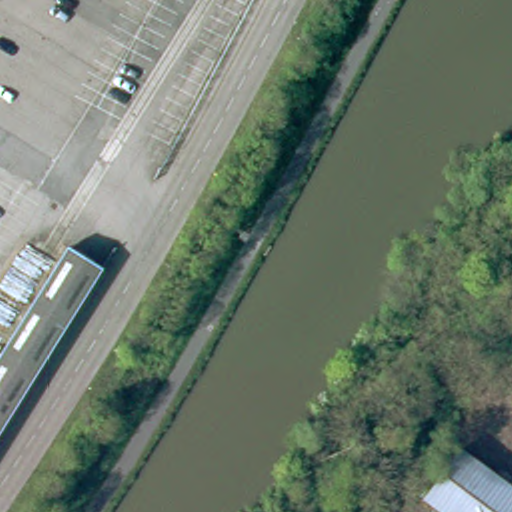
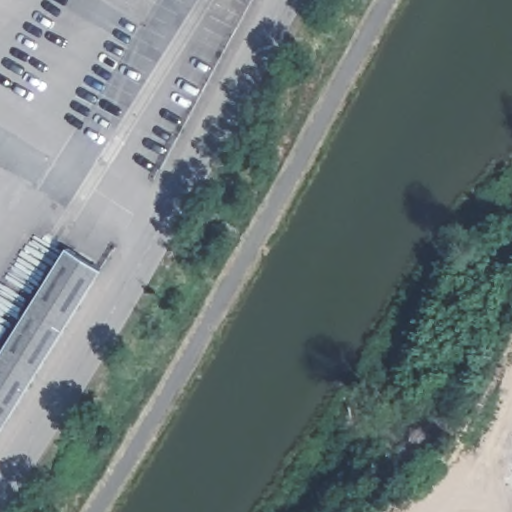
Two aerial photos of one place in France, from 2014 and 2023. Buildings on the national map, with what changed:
unchanged [(107,264),(0,436),(0,359),(73,243),(107,264)]
demolished [(462,441),(512,478),(512,512),(432,512),(420,504),(462,441)]

